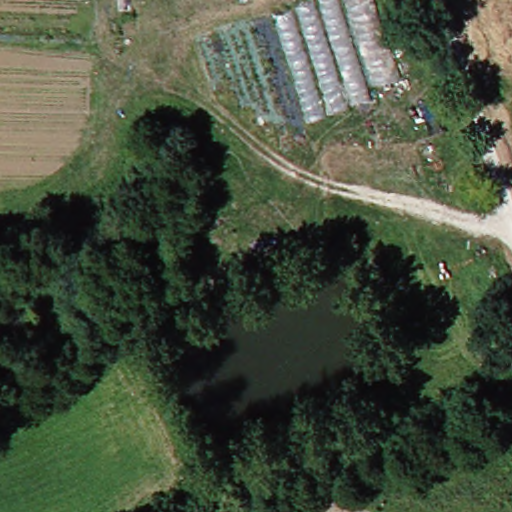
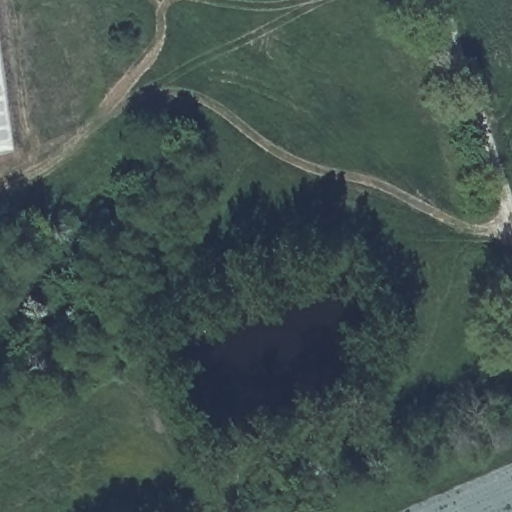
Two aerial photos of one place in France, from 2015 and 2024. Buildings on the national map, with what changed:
new [(243,2),(243,0),(247,0),(243,2)]
new [(369,90),(372,101),(308,121),(270,0),(377,0),(403,79),(369,90)]
new [(0,54),(13,152),(0,154),(0,54)]

